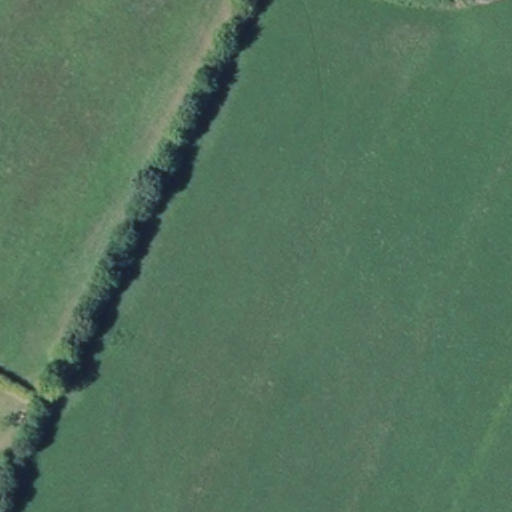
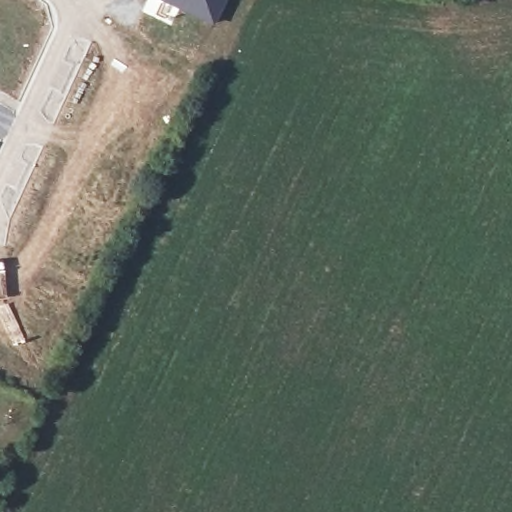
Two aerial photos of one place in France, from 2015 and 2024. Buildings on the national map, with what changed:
new [(161,1),(154,16),(142,10),(146,0),(227,0),(214,26),(161,1)]

